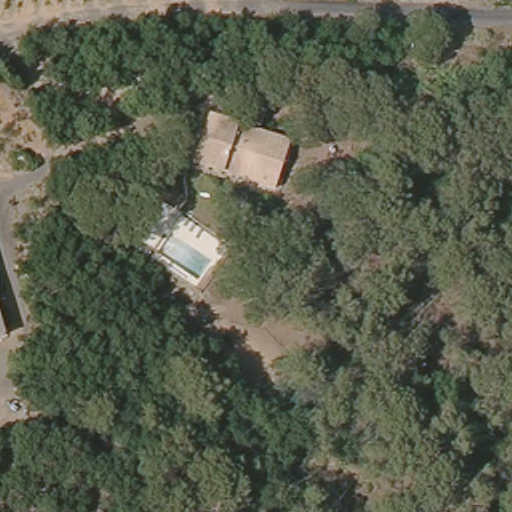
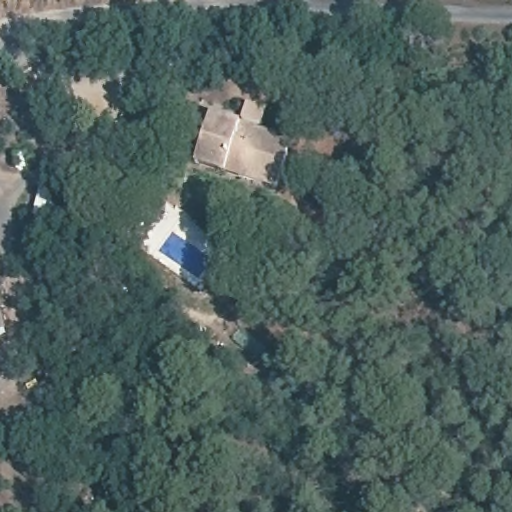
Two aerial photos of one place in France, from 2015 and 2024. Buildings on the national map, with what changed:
unchanged [(196,165),(207,107),(240,114),(242,95),(271,103),(268,122),(297,130),(288,185),(196,165)]
unchanged [(10,332),(0,335),(0,295),(10,332)]
unchanged [(55,415),(61,446),(38,448),(30,415),(55,415)]

